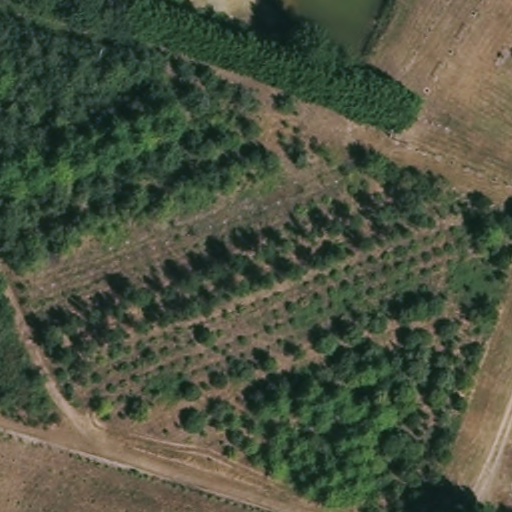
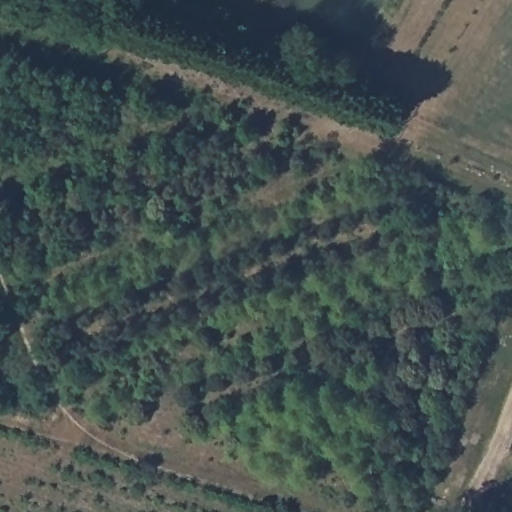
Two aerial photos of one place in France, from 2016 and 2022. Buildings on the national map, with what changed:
[]

